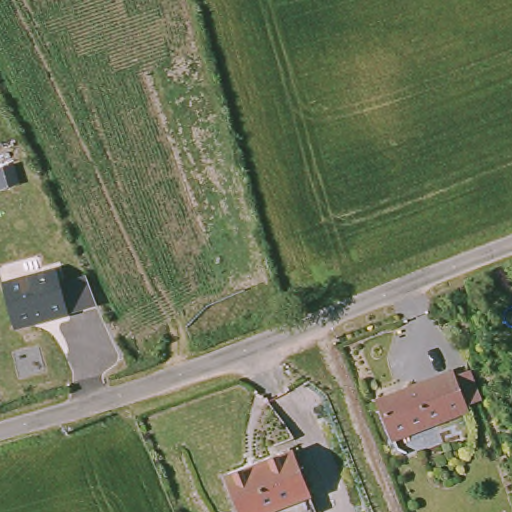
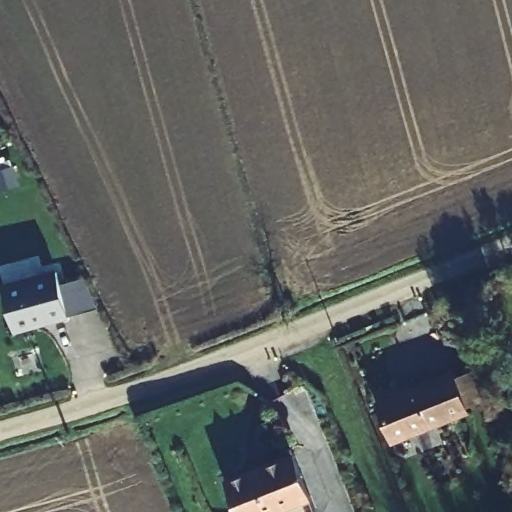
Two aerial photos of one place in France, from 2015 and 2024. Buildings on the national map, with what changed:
unchanged [(70,315),(15,327),(4,282),(58,269),(70,315)]
unchanged [(449,375),(464,414),(399,442),(385,402),(449,375)]
unchanged [(277,512),(237,512),(225,478),(293,454),(310,498),(277,512)]

